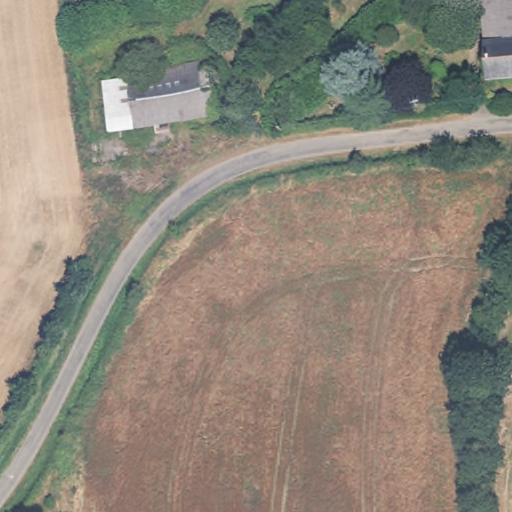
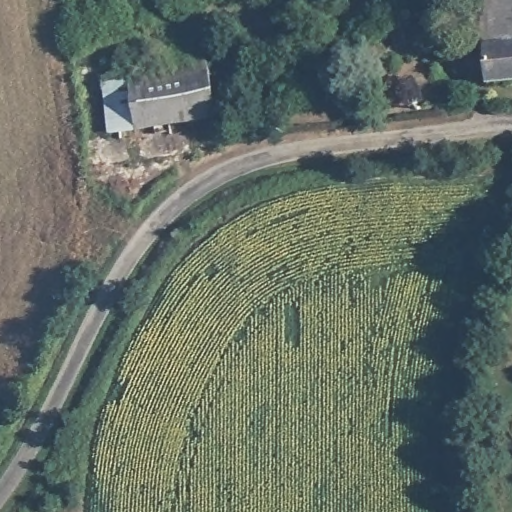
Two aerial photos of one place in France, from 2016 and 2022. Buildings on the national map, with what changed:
unchanged [(482,45),(477,0),(512,0),(512,42),(482,45)]
unchanged [(512,42),(512,85),(487,88),(482,45),(512,42)]
unchanged [(120,65),(198,49),(203,64),(123,81),(120,65)]
unchanged [(123,81),(203,64),(214,115),(134,129),(123,81)]
unchanged [(97,86),(123,81),(134,129),(106,133),(97,86)]

